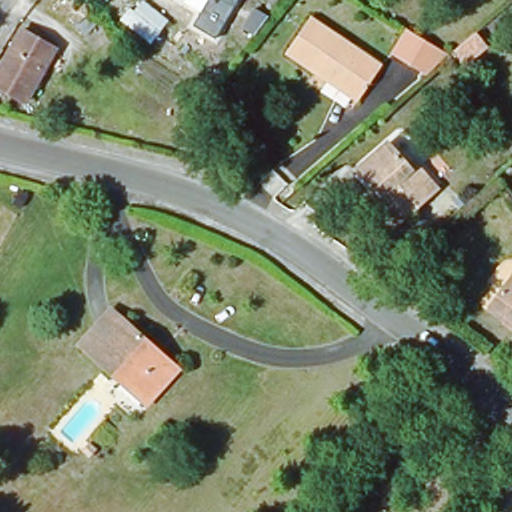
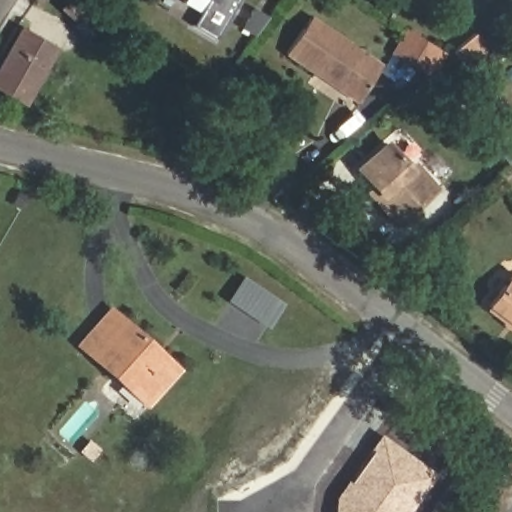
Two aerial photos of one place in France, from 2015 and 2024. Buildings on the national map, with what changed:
unchanged [(150,46),(117,19),(128,6),(134,11),(143,0),(171,22),(150,46)]
unchanged [(216,41),(194,27),(202,12),(183,2),(184,0),(238,0),(216,41)]
unchanged [(315,74),(285,53),(309,16),(379,64),(358,96),(355,101),(315,74)]
unchanged [(424,76),(385,54),(402,27),(439,50),(424,76)]
unchanged [(472,28),(483,42),(461,61),(450,47),(472,28)]
unchanged [(0,71),(22,33),(41,43),(54,51),(44,69),(25,104),(0,91),(0,71)]
unchanged [(374,190),(359,172),(387,146),(410,172),(415,168),(436,191),(397,226),(376,202),(369,195),(374,190)]
unchanged [(364,262),(379,250),(394,266),(379,278),(364,262)]
new [(264,326),(243,312),(227,301),(242,278),(258,290),(279,303),(264,326)]
unchanged [(491,309),(494,304),(512,280),(512,326),(491,309)]
unchanged [(174,366),(143,402),(76,342),(107,307),(174,366)]
new [(348,480),(350,481),(372,451),(370,449),(381,433),(438,473),(410,512),(333,512),(335,499),(348,480)]

